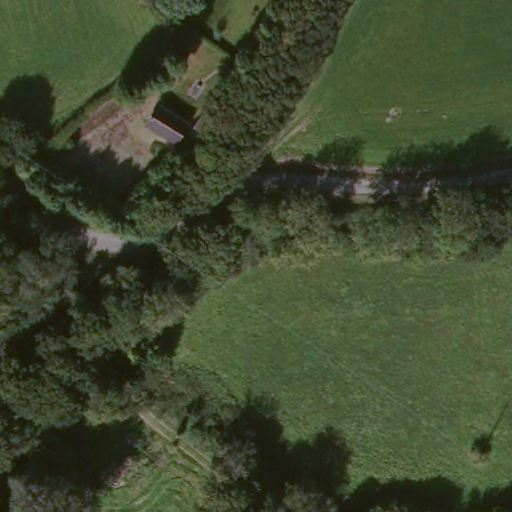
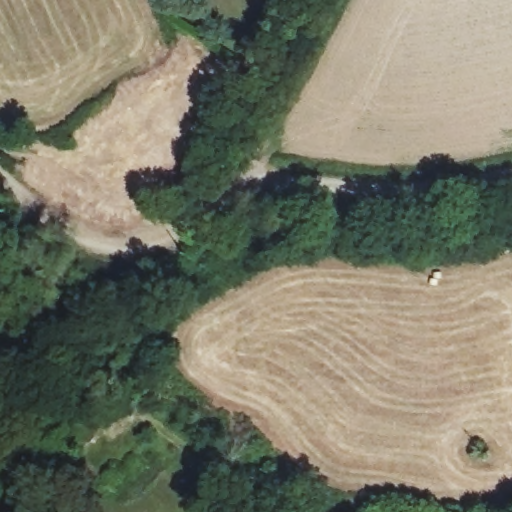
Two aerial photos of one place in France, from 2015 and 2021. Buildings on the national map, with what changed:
unchanged [(134,114),(145,95),(178,114),(165,135),(134,114)]
unchanged [(179,115),(194,95),(208,105),(193,125),(179,115)]
unchanged [(102,440),(99,438),(86,457),(66,443),(80,423),(77,420),(94,398),(118,418),(102,440)]

